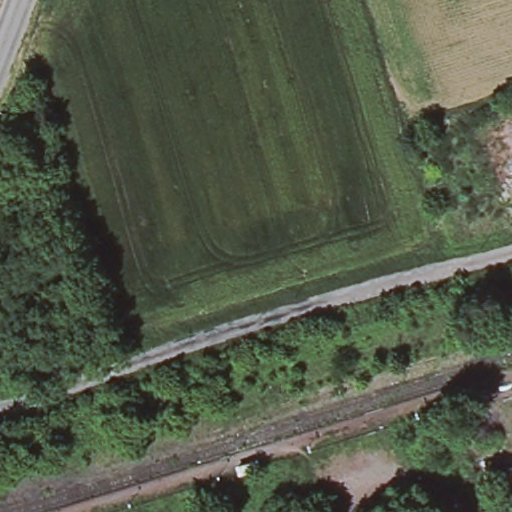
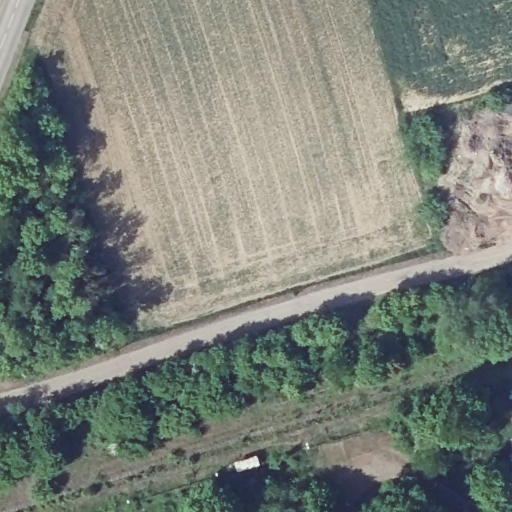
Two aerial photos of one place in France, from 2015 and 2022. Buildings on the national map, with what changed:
unchanged [(259,462),(240,468),(238,462),(257,456),(259,462)]

